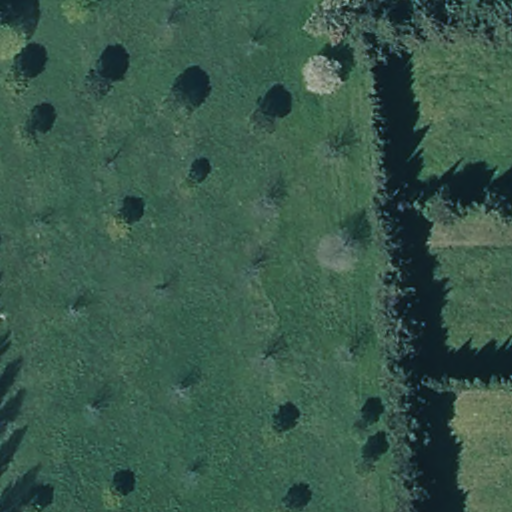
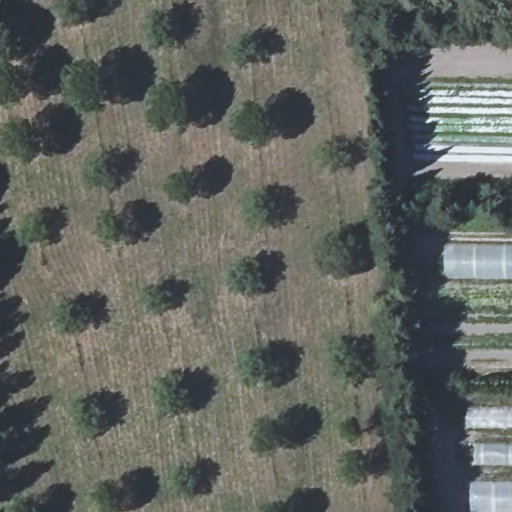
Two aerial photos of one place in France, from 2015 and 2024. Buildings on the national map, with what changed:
new [(445,279),(446,244),(512,245),(512,280),(445,279)]
new [(466,429),(466,407),(512,407),(512,429),(466,429)]
new [(475,466),(475,443),(512,444),(512,466),(475,466)]
new [(470,483),(512,483),(512,512),(470,512),(470,483)]

